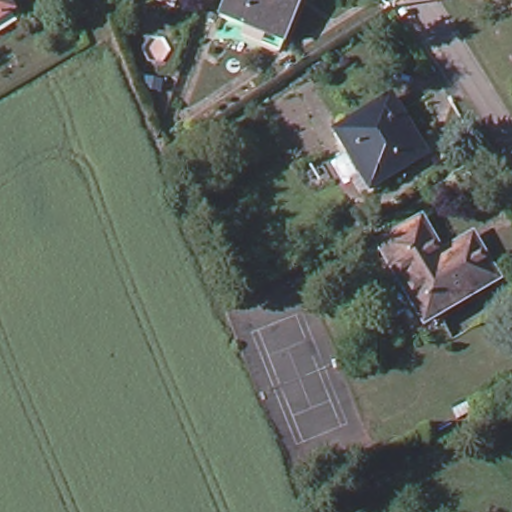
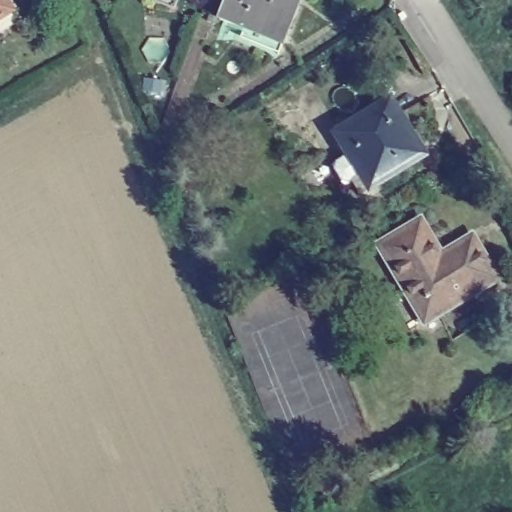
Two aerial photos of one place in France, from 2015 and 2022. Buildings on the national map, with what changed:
unchanged [(0,18),(0,0),(5,0),(12,11),(0,18)]
unchanged [(263,34),(217,15),(222,0),(294,0),(298,2),(282,41),(274,60),(255,53),(263,34)]
unchanged [(332,164),(349,155),(335,132),(393,99),(423,149),(430,159),(405,173),(370,193),(360,175),(344,185),(332,164)]
unchanged [(466,241),(490,283),(432,316),(417,324),(383,267),(374,250),(415,226),(425,242),(435,259),(466,241)]

